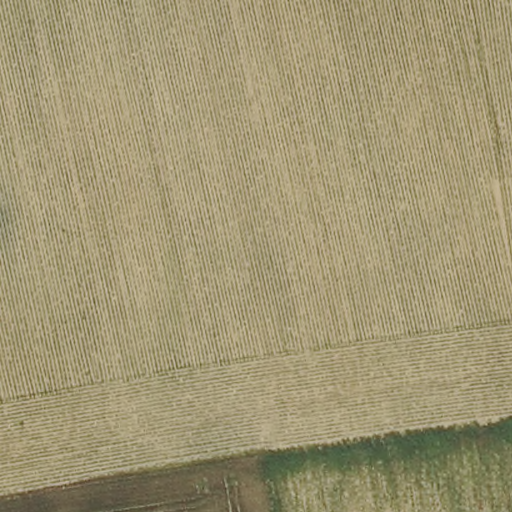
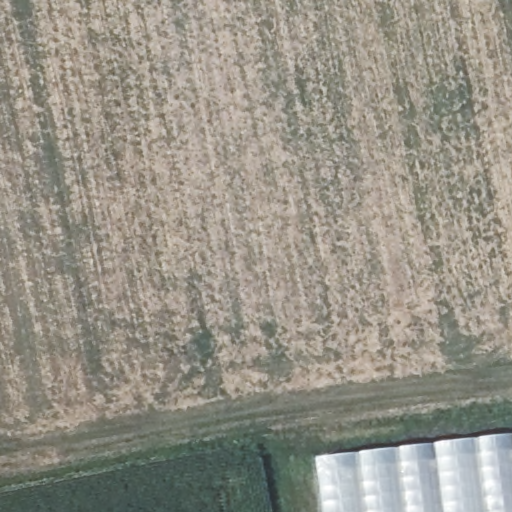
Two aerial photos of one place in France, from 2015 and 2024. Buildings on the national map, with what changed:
demolished [(278,472),(512,428),(512,512),(287,512),(278,472)]
new [(314,464),(512,439),(512,512),(320,512),(314,464)]

